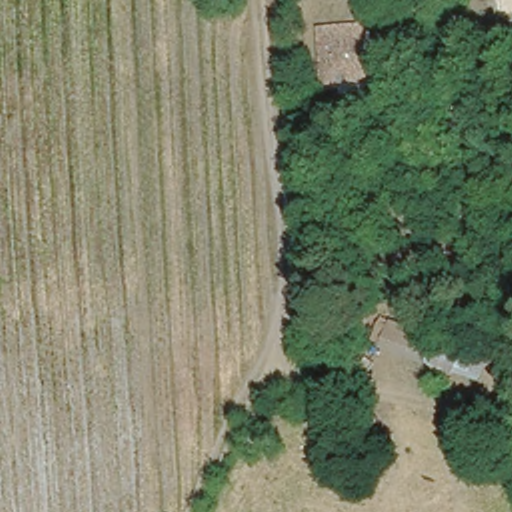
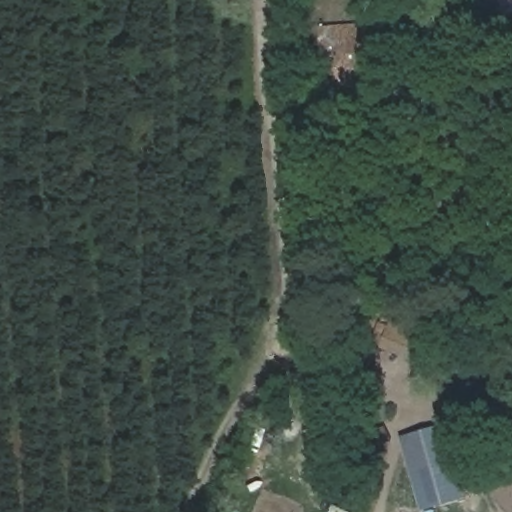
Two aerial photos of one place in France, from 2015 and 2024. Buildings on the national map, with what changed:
unchanged [(376,72),(320,76),(317,34),(372,30),(376,72)]
unchanged [(392,321),(437,332),(434,341),(480,359),(478,363),(507,379),(497,391),(382,352),(392,321)]
new [(401,439),(446,425),(467,499),(422,512),(401,439)]

